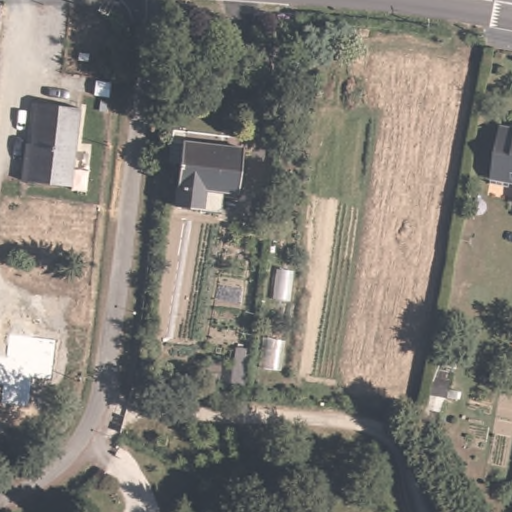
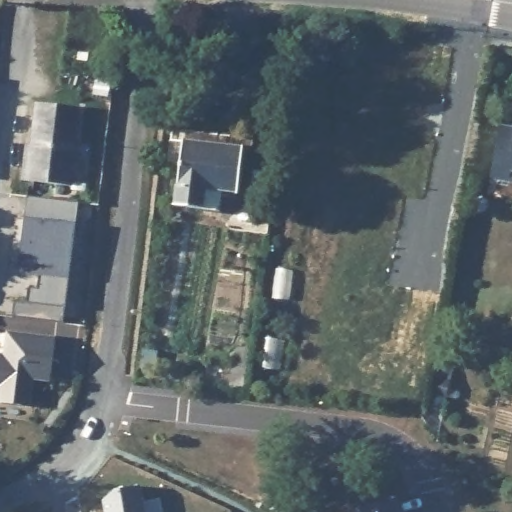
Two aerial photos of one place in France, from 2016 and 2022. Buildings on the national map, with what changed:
unchanged [(29,163),(38,163),(42,104),(85,106),(80,184),(28,180),(29,163)]
unchanged [(512,123),(512,177),(488,173),(496,121),(512,123)]
unchanged [(213,138),(240,140),(236,188),(222,186),(219,207),(209,205),(175,202),(183,134),(213,138)]
new [(77,203),(63,323),(9,316),(12,301),(25,302),(27,288),(36,288),(38,276),(15,274),(23,217),(25,197),(77,203)]
demolished [(25,414),(0,411),(0,312),(35,315),(25,414)]
new [(5,331),(54,337),(50,382),(34,379),(30,408),(26,407),(24,421),(0,418),(0,415),(2,403),(0,403),(0,353),(3,353),(5,331)]
new [(237,344),(249,345),(249,375),(248,389),(235,389),(235,374),(237,344)]
new [(434,378),(436,369),(452,372),(450,381),(449,389),(458,391),(457,399),(447,397),(444,412),(426,409),(429,404),(432,394),(434,378)]
new [(115,491),(140,486),(144,512),(105,512),(104,501),(115,491)]
new [(358,506),(397,498),(400,512),(359,512),(358,506)]

